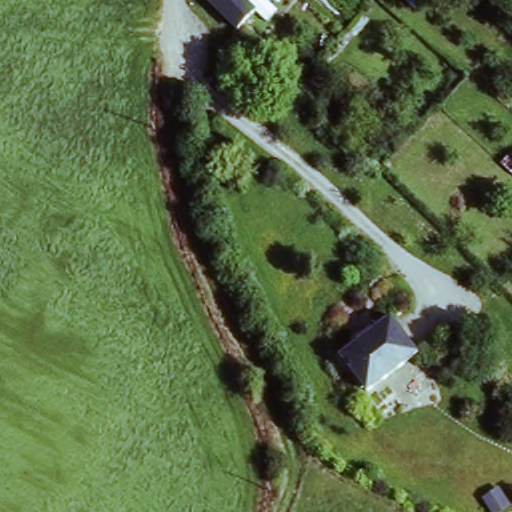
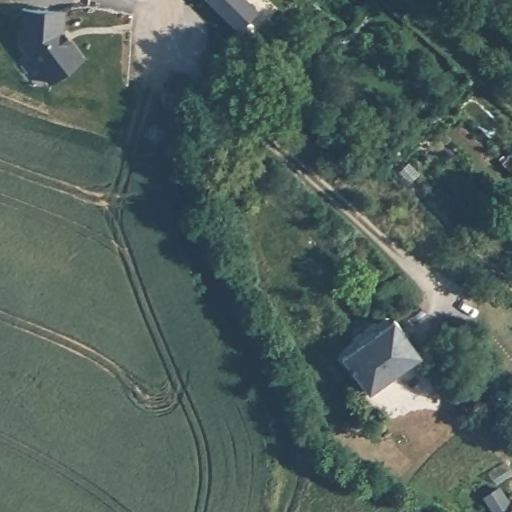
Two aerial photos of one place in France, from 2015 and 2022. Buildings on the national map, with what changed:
unchanged [(239,26),(210,0),(244,0),(255,10),(239,26)]
new [(23,11),(63,13),(63,34),(84,61),(52,85),(22,46),(23,11)]
unchanged [(393,325),(414,360),(361,393),(339,358),(393,325)]

